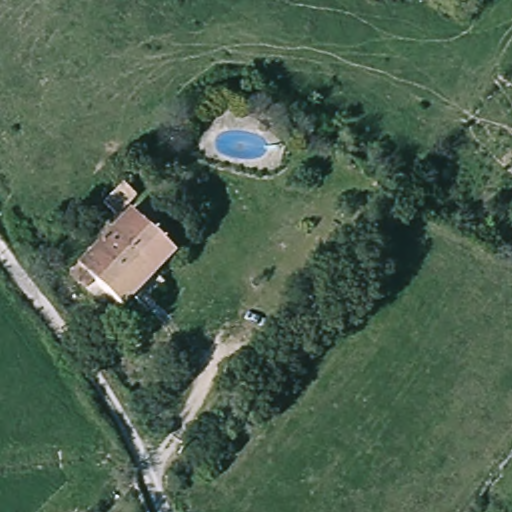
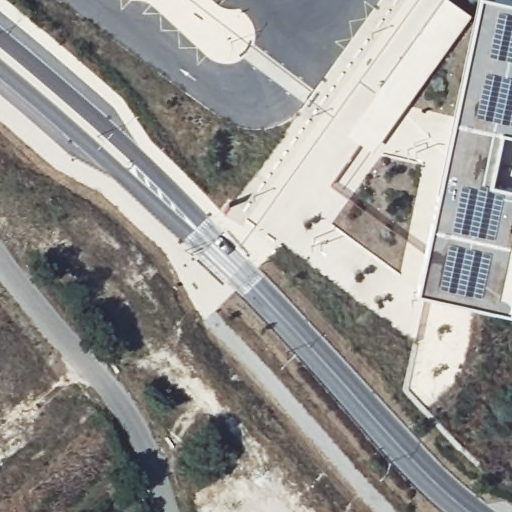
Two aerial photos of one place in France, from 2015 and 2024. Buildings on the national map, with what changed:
new [(471,14),(372,152),(347,132),(441,0),(452,0),(471,14)]
new [(417,289),(478,0),(512,0),(512,303),(510,309),(417,289)]
demolished [(84,268),(135,217),(174,256),(123,307),(84,268)]

